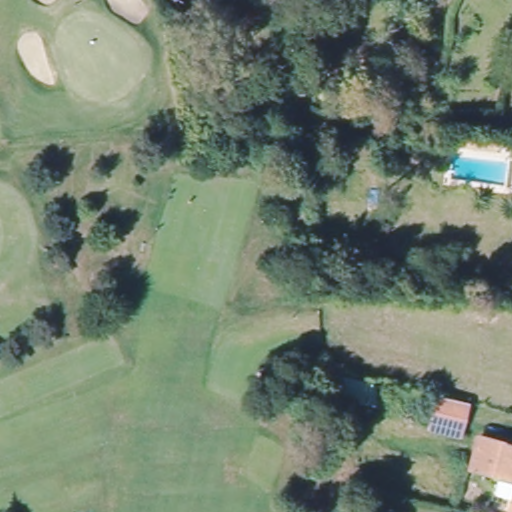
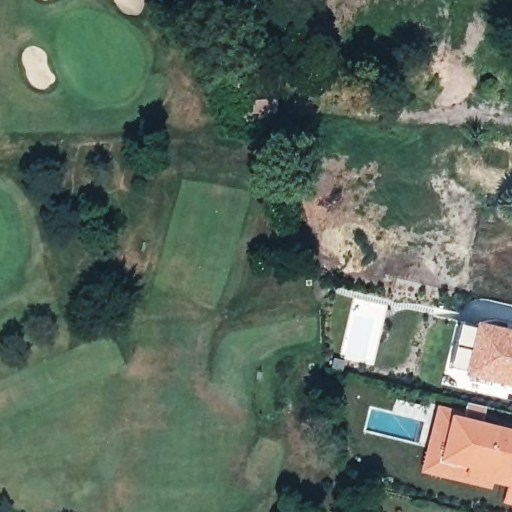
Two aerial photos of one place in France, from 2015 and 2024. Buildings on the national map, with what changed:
unchanged [(499,131),(494,145),(471,137),(462,134),(465,125),(475,125),(486,125),(499,131)]
new [(512,386),(461,375),(473,321),(512,330),(512,386)]
demolished [(471,398),(461,430),(433,421),(442,390),(471,398)]
new [(500,484),(491,483),(490,488),(419,471),(436,404),(462,413),(466,399),(485,407),(478,425),(487,428),(512,435),(512,491),(498,488),(504,470),(500,484)]
demolished [(477,464),(487,428),(512,435),(512,472),(504,470),(477,464)]
unchanged [(489,511),(494,512),(489,512),(489,511)]

